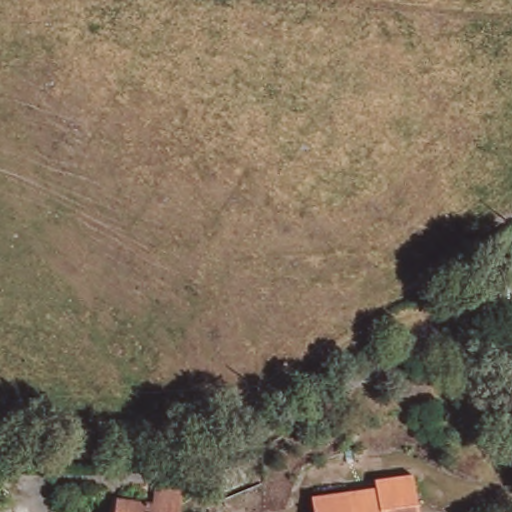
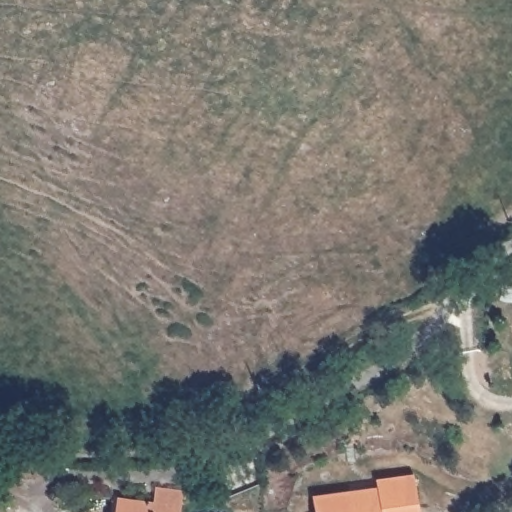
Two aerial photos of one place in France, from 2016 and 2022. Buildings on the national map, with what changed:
unchanged [(344,491),(345,497),(371,493),(370,479),(410,473),(416,512),(309,512),(306,496),(344,491)]
unchanged [(179,505),(177,512),(109,512),(111,494),(179,505)]

